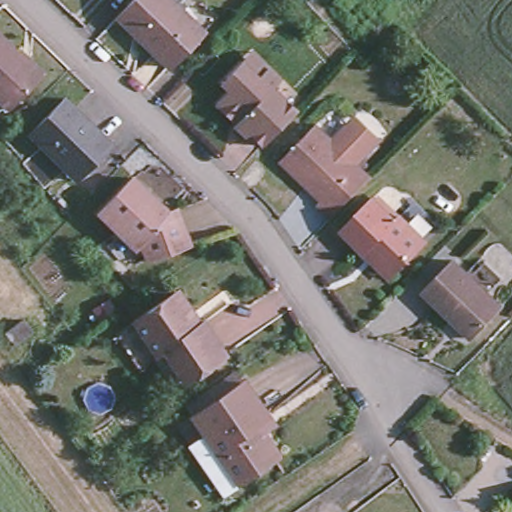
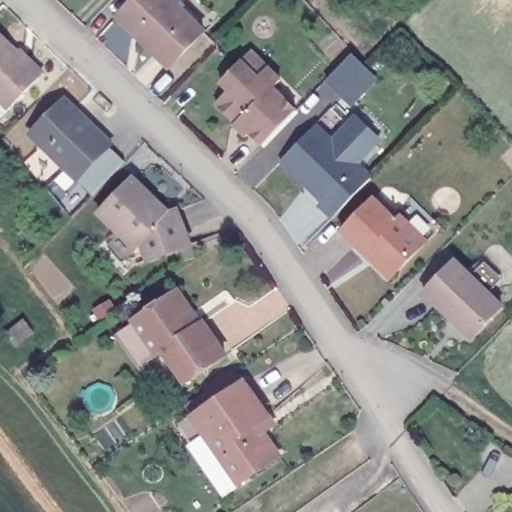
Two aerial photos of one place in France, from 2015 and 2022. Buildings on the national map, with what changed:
unchanged [(135,0),(188,0),(177,11),(202,36),(166,71),(140,44),(115,19),(120,15),(135,0)]
unchanged [(23,49),(25,47),(47,68),(43,73),(12,105),(10,101),(0,111),(0,27),(23,49)]
unchanged [(269,90),(292,113),(255,149),(244,136),(240,140),(228,127),(230,125),(211,106),(223,93),(215,84),(237,63),(247,52),(263,69),(277,83),(269,90)]
new [(344,99),(327,82),(353,57),(379,82),(358,102),(352,108),(344,99)]
unchanged [(110,144),(75,178),(28,133),(63,98),(110,144)]
unchanged [(317,123),(332,138),(347,122),(355,114),(380,138),(372,146),(357,162),(370,175),(331,216),(317,202),(321,199),(307,184),(281,159),(317,123)]
unchanged [(135,178),(172,213),(180,211),(192,245),(151,261),(145,244),(137,247),(102,213),(135,178)]
unchanged [(365,253),(342,230),(374,197),(395,219),(400,214),(408,207),(415,201),(440,226),(427,240),(395,273),(390,277),(365,253)]
unchanged [(455,259),(502,306),(472,338),(424,291),(455,259)]
unchanged [(124,329),(136,321),(175,294),(182,289),(205,322),(227,354),(187,381),(166,351),(160,355),(148,363),(124,329)]
unchanged [(25,320),(34,331),(17,345),(7,333),(25,320)]
unchanged [(236,483),(219,459),(222,456),(207,434),(203,437),(202,433),(191,440),(180,424),(190,417),(240,381),(266,416),(255,423),(260,430),(277,454),(236,483)]

